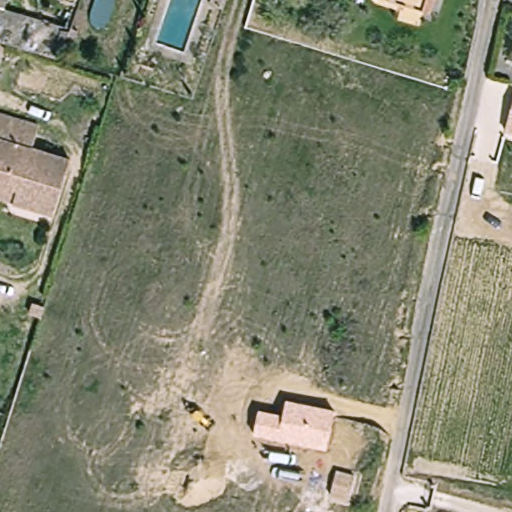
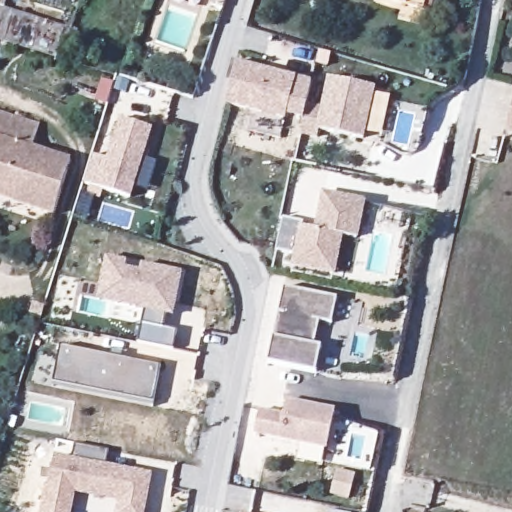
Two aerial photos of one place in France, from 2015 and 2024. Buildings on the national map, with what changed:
unchanged [(0,39),(0,0),(8,0),(5,10),(75,28),(65,56),(0,39)]
unchanged [(394,0),(430,0),(426,11),(394,0)]
new [(288,118),(287,120),(226,106),(237,62),(311,80),(307,104),(302,122),(288,118)]
new [(315,139),(299,136),(307,104),(320,106),(328,78),(376,86),(362,140),(317,130),(315,139)]
unchanged [(512,103),(512,133),(505,131),(512,103)]
unchanged [(45,130),(38,151),(72,163),(55,216),(18,204),(0,198),(0,115),(45,130)]
new [(108,159),(120,119),(153,129),(131,199),(83,184),(92,155),(108,159)]
new [(367,201),(358,240),(342,236),(334,274),(290,267),(299,226),(314,229),(322,192),(367,201)]
new [(127,263),(125,270),(141,273),(142,266),(182,274),(173,317),(166,315),(164,329),(176,331),(172,350),(138,341),(144,311),(117,305),(119,288),(102,284),(107,258),(127,263)]
new [(313,347),(320,348),(315,372),(269,365),(274,339),(285,290),(337,300),(330,324),(318,322),(313,347)]
new [(160,367),(152,403),(53,384),(62,348),(160,367)]
unchanged [(332,410),(324,449),(255,435),(261,410),(284,415),(288,402),(332,410)]
new [(75,446),(109,452),(107,465),(153,474),(146,512),(117,512),(118,504),(77,496),(73,512),(40,512),(46,484),(50,485),(55,455),(72,459),(75,446)]
unchanged [(354,473),(348,501),(330,496),(336,468),(354,473)]

